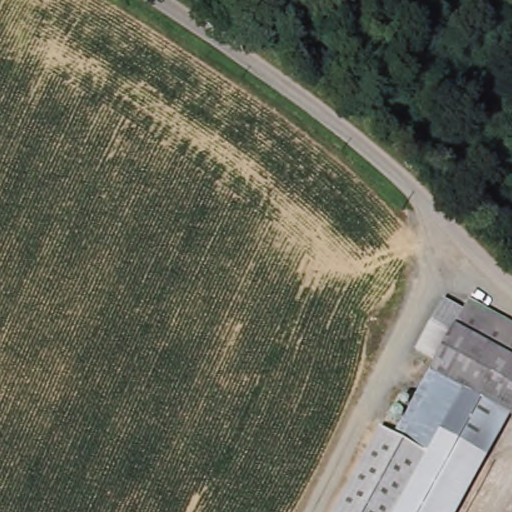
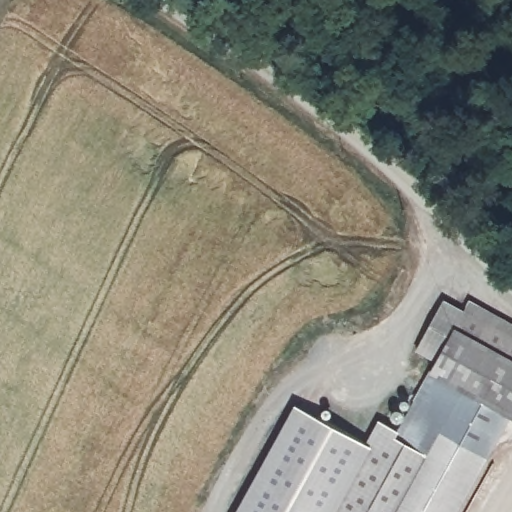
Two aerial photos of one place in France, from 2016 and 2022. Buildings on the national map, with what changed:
unchanged [(436,374),(474,300),(512,321),(512,415),(436,374)]
unchanged [(462,512),(359,512),(399,441),(436,374),(512,415),(512,418),(462,512)]
new [(296,404),(369,444),(332,512),(235,512),(296,404)]
unchanged [(359,512),(332,512),(379,428),(399,441),(359,512)]

